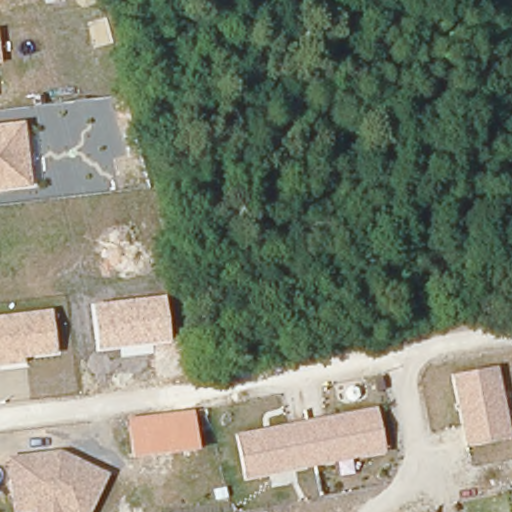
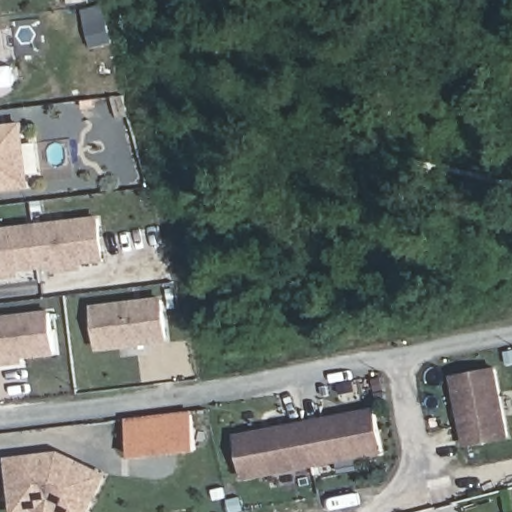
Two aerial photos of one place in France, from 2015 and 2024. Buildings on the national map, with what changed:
new [(94,49),(88,26),(83,10),(102,8),(106,20),(112,43),(94,49)]
unchanged [(29,185),(0,189),(0,126),(24,122),(29,185)]
new [(82,270),(54,273),(54,267),(19,272),(20,277),(0,279),(0,228),(100,215),(105,262),(81,265),(82,270)]
unchanged [(172,341),(99,350),(94,305),(166,296),(172,341)]
unchanged [(56,354),(23,357),(24,364),(0,367),(0,318),(52,312),(56,354)]
unchanged [(499,366),(511,437),(466,445),(454,376),(499,366)]
unchanged [(377,408),(385,454),(355,459),(358,473),(342,475),(339,463),(246,481),(237,435),(377,408)]
unchanged [(193,410),(200,450),(133,458),(128,418),(193,410)]
unchanged [(59,451),(109,475),(92,512),(15,512),(6,460),(59,451)]

